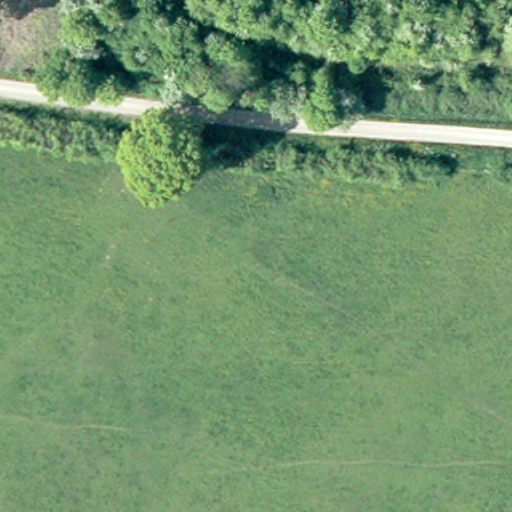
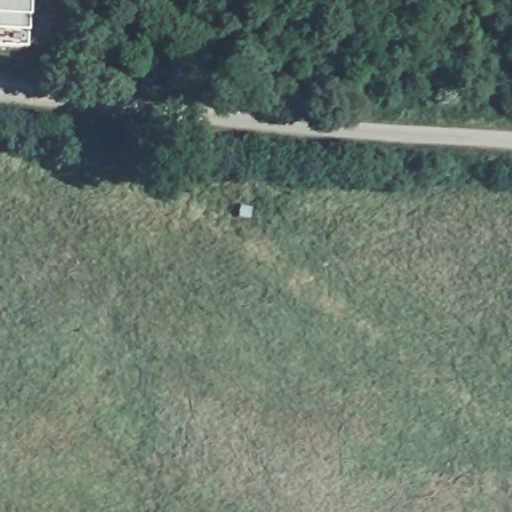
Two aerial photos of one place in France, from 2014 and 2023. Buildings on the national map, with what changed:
new [(30,11),(28,44),(0,42),(0,0),(31,0),(30,11)]

